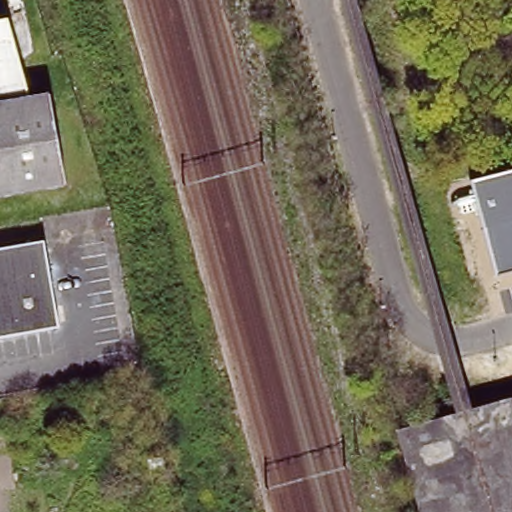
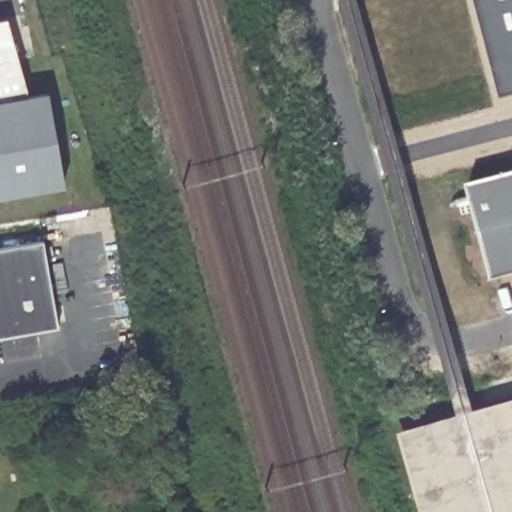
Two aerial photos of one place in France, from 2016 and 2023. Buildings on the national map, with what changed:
new [(504,94),(479,0),(512,0),(512,92),(504,94)]
unchanged [(13,32),(17,60),(0,62),(0,13),(8,12),(13,32)]
unchanged [(0,62),(17,60),(23,91),(43,88),(59,182),(0,192),(0,62)]
unchanged [(495,275),(469,180),(512,170),(512,270),(495,275)]
unchanged [(0,244),(44,237),(59,325),(0,334),(0,244)]
unchanged [(512,396),(512,512),(418,512),(394,430),(512,396)]

